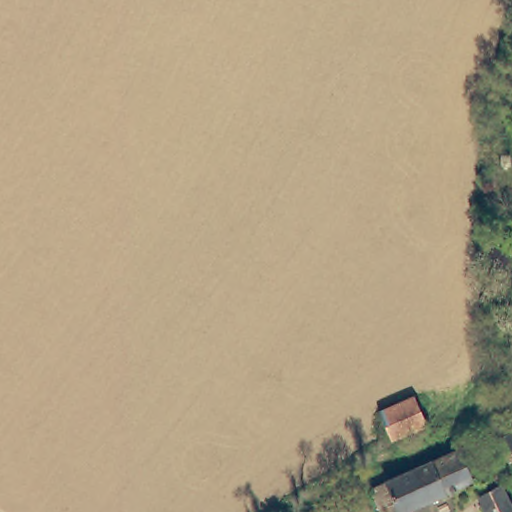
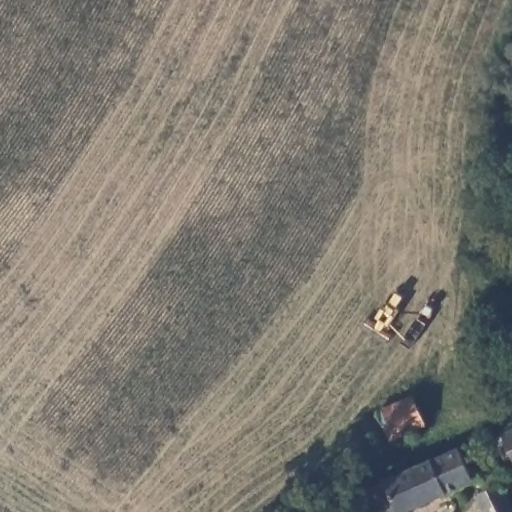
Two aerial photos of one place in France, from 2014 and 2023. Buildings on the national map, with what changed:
unchanged [(375,412),(411,397),(423,425),(388,441),(375,412)]
unchanged [(498,465),(487,443),(512,431),(512,464),(508,460),(498,465)]
unchanged [(364,488),(382,482),(459,451),(471,482),(445,492),(446,495),(404,512),(394,512),(393,510),(389,512),(374,512),(364,488)]
unchanged [(500,488),(511,512),(479,512),(474,501),(500,488)]

